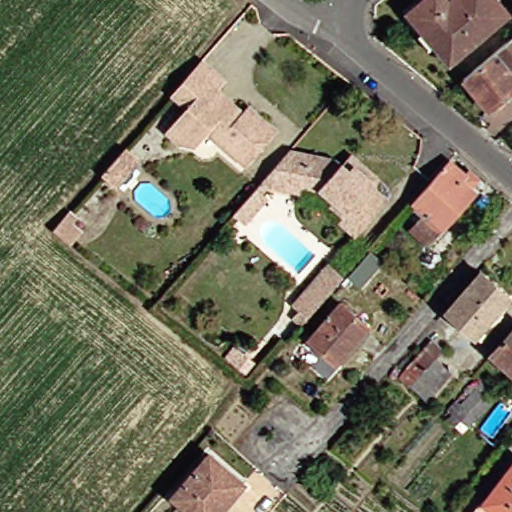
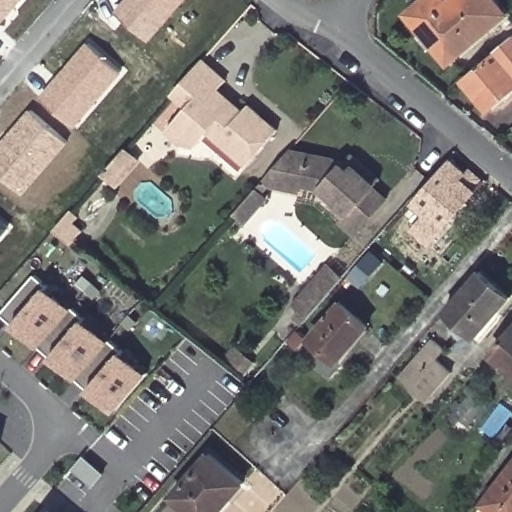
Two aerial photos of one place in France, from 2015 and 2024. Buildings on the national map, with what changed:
new [(0,0),(23,0),(0,26),(0,0)]
new [(116,10),(125,0),(189,0),(150,41),(116,10)]
unchanged [(415,10),(426,0),(505,0),(512,9),(512,11),(456,60),(415,10)]
new [(75,128),(41,97),(90,41),(125,73),(75,128)]
unchanged [(491,112),(465,83),(512,42),(512,94),(491,112)]
unchanged [(235,78),(221,91),(247,113),(255,106),(284,134),(250,166),(211,134),(195,151),(169,128),(191,104),(178,91),(210,56),(235,78)]
new [(0,171),(0,144),(32,108),(71,142),(26,193),(0,171)]
unchanged [(349,224),(350,222),(337,206),(341,201),(327,188),(305,185),(305,192),(276,188),(262,200),(268,206),(249,222),(240,211),(262,186),(293,149),(335,156),(343,156),(351,165),(353,163),(362,153),(388,177),(383,183),(381,186),(394,199),(367,226),(360,234),(349,224)]
unchanged [(116,185),(104,174),(112,163),(125,150),(138,161),(116,185)]
unchanged [(428,248),(410,233),(412,229),(419,220),(427,211),(416,199),(453,157),(468,170),(473,164),(486,175),(477,184),(481,188),(428,248)]
unchanged [(77,218),(72,224),(81,232),(70,245),(52,230),(70,211),(77,218)]
new [(0,215),(11,225),(0,238),(0,215)]
unchanged [(391,260),(379,250),(387,240),(400,250),(391,260)]
unchanged [(399,288),(384,276),(386,274),(373,264),(378,258),(406,280),(399,288)]
unchanged [(348,277),(311,320),(296,307),(335,265),(348,277)]
new [(91,394),(79,383),(54,361),(40,350),(16,329),(2,317),(40,274),(55,286),(79,307),(92,319),(116,340),(130,352),(154,373),(150,377),(119,412),(116,416),(91,394)]
unchanged [(483,276),(509,299),(496,315),(502,320),(483,343),(451,315),(483,276)]
unchanged [(342,301),(370,322),(337,361),(311,340),(342,301)]
unchanged [(495,359),(512,336),(512,372),(495,359)]
unchanged [(430,404),(402,381),(432,344),(446,355),(438,364),(453,377),(430,404)]
unchanged [(451,427),(443,421),(476,384),(485,391),(451,427)]
unchanged [(176,497),(212,453),(247,483),(234,498),(222,512),(195,512),(176,497)]
unchanged [(492,499),(512,474),(512,512),(479,512),(490,498),(492,499)]

